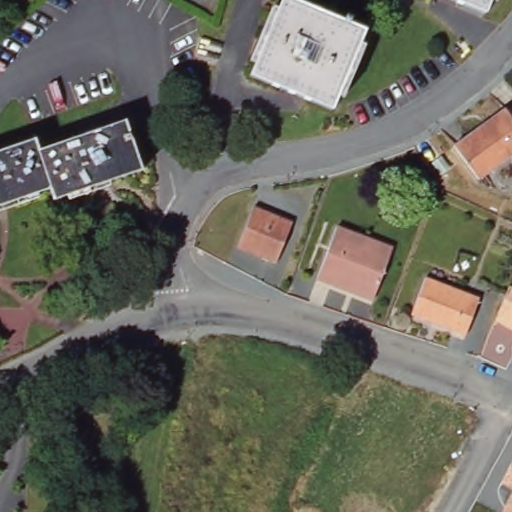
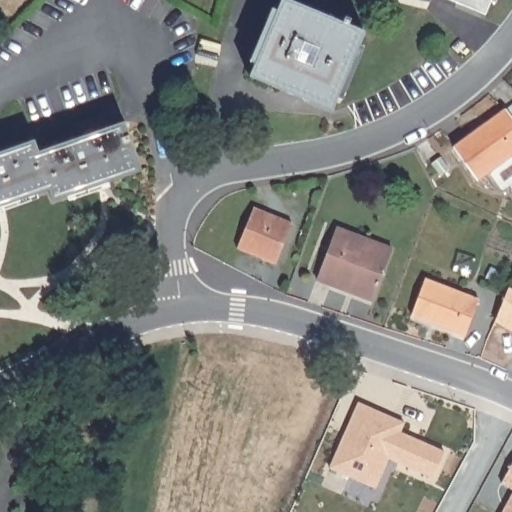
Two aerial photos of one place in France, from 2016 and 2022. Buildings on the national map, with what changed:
unchanged [(345,14),(352,17),(349,24),(365,30),(331,107),(252,74),(284,0),(288,0),(342,21),(345,14)]
unchanged [(459,0),(491,0),(487,12),(459,0)]
unchanged [(512,113),(512,155),(483,179),(457,146),(506,106),(512,113)]
unchanged [(37,136),(40,147),(130,117),(146,166),(57,197),(53,185),(0,202),(0,147),(37,136)]
unchanged [(292,222),(276,262),(238,246),(254,206),(292,222)]
unchanged [(396,244),(375,294),(320,272),(340,221),(396,244)]
unchanged [(481,295),(465,331),(413,309),(429,273),(481,295)]
unchanged [(512,285),(512,328),(493,317),(512,285)]
new [(403,423),(426,434),(422,443),(443,452),(432,479),(387,459),(374,488),(328,468),(357,403),(403,423)]
unchanged [(512,461),(512,488),(502,482),(512,461)]
unchanged [(512,494),(512,512),(503,512),(512,494)]

